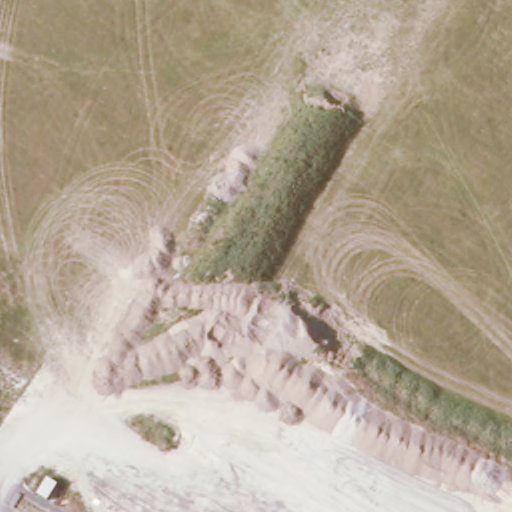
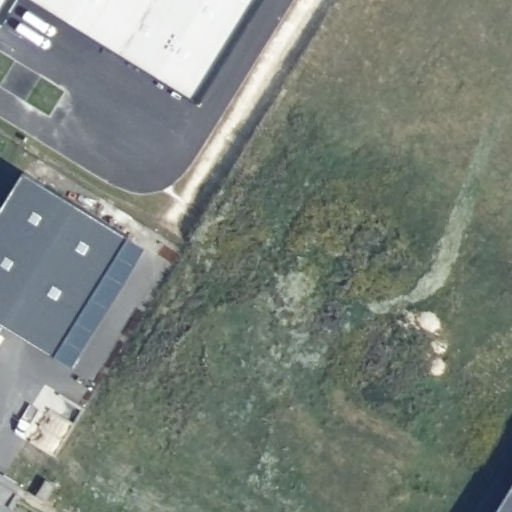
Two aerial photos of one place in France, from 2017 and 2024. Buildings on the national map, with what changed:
new [(10,0),(0,16),(0,0),(10,0)]
new [(35,0),(257,0),(195,98),(35,0)]
new [(130,241),(55,361),(2,327),(0,331),(0,215),(25,176),(130,241)]
new [(147,251),(72,371),(55,361),(130,241),(147,251)]
new [(512,489),(512,512),(498,512),(512,489)]

